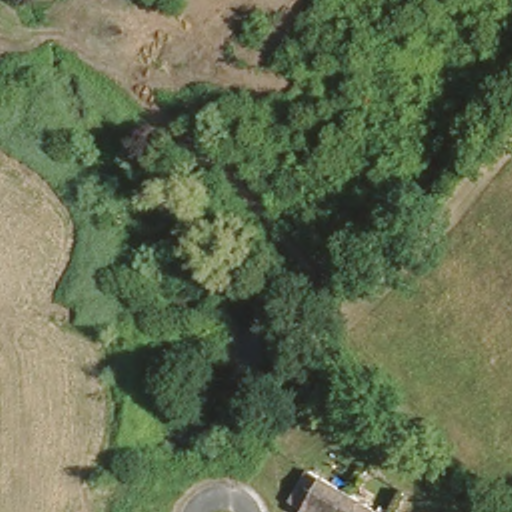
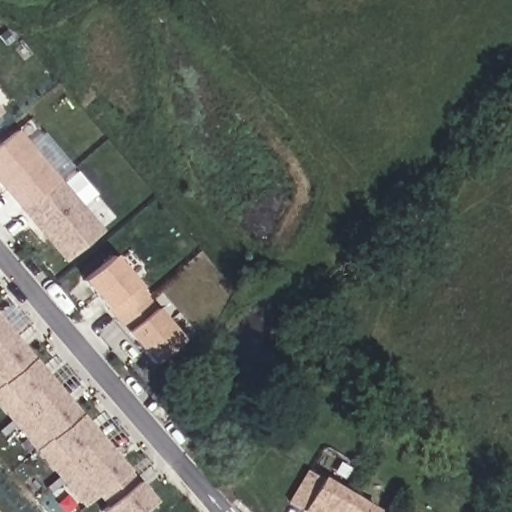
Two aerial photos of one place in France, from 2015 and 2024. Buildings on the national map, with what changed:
new [(0,118),(0,108),(5,113),(0,118)]
new [(31,210),(0,173),(0,152),(24,131),(66,181),(31,210)]
new [(110,232),(75,261),(31,210),(66,181),(110,232)]
new [(154,296),(126,321),(92,281),(120,257),(154,296)]
new [(190,341),(164,364),(126,321),(153,297),(190,341)]
new [(149,512),(111,512),(111,511),(123,500),(114,489),(95,505),(0,395),(0,312),(161,501),(149,512)]
unchanged [(302,496),(288,488),(304,461),(345,486),(329,512),(309,512),(297,505),(302,496)]
unchanged [(386,510),(384,512),(329,512),(345,486),(386,510)]
unchanged [(384,512),(386,510),(389,512),(384,512)]

